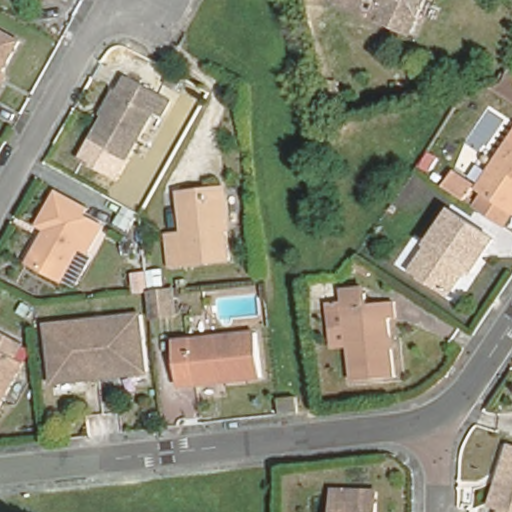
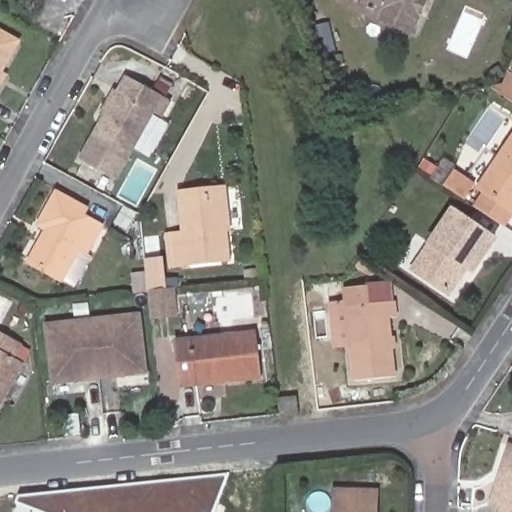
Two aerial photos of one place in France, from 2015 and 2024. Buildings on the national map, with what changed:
unchanged [(347,0),(418,0),(408,24),(347,0)]
unchanged [(0,70),(0,24),(19,35),(0,70)]
unchanged [(177,107),(168,123),(155,116),(129,164),(94,146),(104,128),(95,124),(113,92),(121,97),(130,82),(177,107)]
unchanged [(199,115),(180,104),(188,90),(207,101),(199,115)]
unchanged [(504,228),(475,209),(487,191),(479,186),(512,138),(512,217),(504,228)]
unchanged [(176,267),(174,241),(189,240),(187,199),(185,187),(228,184),(232,237),(234,264),(176,267)]
unchanged [(88,255),(81,251),(64,281),(28,262),(46,230),(38,225),(58,190),(87,206),(82,214),(104,226),(88,255)]
unchanged [(451,296),(450,297),(415,274),(451,217),(473,231),(492,244),(493,244),(473,275),(466,271),(457,285),(451,296)]
unchanged [(176,285),(178,305),(154,308),(151,288),(176,285)]
unchanged [(358,351),(354,307),(354,302),(353,291),(374,289),(375,305),(395,303),(401,303),(403,319),(396,319),(401,378),(360,381),(358,351)]
unchanged [(348,352),(334,353),(330,353),(327,304),(335,303),(354,302),(354,307),(358,351),(348,352)]
unchanged [(53,385),(47,322),(144,310),(151,374),(53,385)]
unchanged [(16,351),(26,356),(0,404),(0,325),(23,338),(16,351)]
unchanged [(182,371),(179,338),(262,329),(265,378),(230,382),(183,388),(182,371)]
unchanged [(499,503),(512,463),(512,508),(499,503)]
new [(15,504),(19,495),(230,473),(215,512),(37,512),(15,504)]
unchanged [(338,483),(382,484),(381,512),(337,512),(338,483)]
unchanged [(512,508),(512,512),(511,512),(512,508)]

